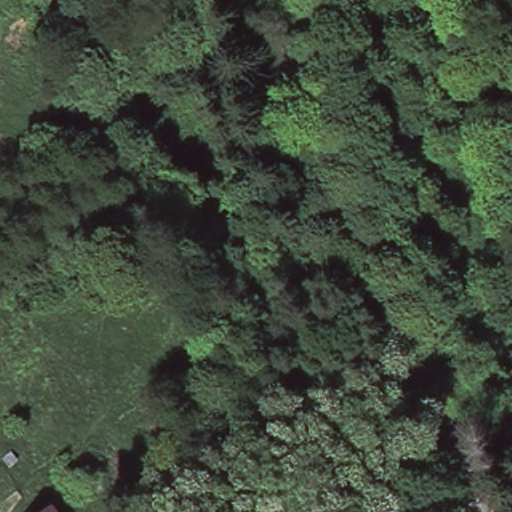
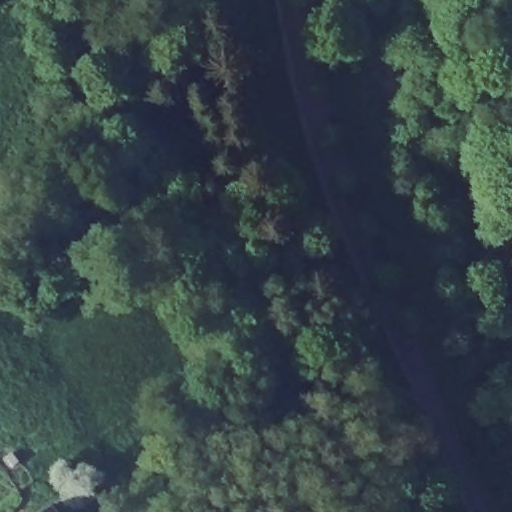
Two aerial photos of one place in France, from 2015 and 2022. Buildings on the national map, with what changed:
unchanged [(53,510),(54,512),(50,512),(53,510)]

